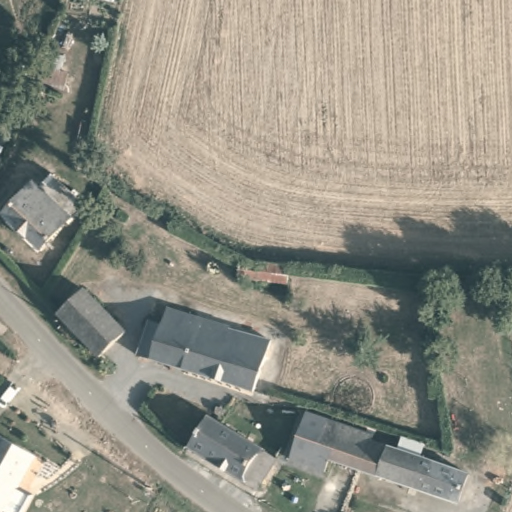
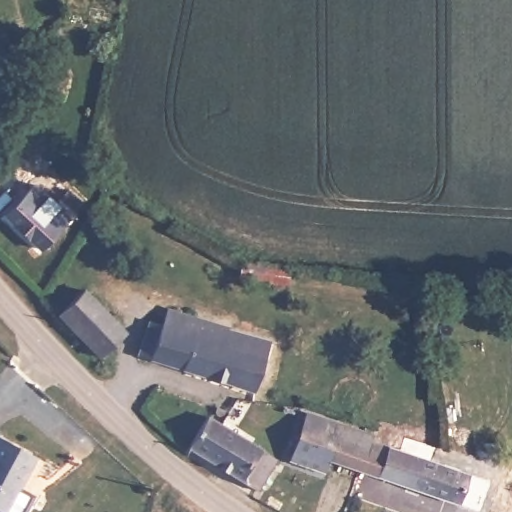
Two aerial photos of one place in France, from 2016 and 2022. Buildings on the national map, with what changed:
unchanged [(0,222),(0,217),(31,181),(36,185),(45,176),(76,205),(34,253),(0,222)]
unchanged [(236,279),(240,262),(288,266),(287,282),(236,279)]
unchanged [(98,357),(57,314),(82,290),(124,332),(98,357)]
unchanged [(141,356),(151,322),(166,325),(171,309),(230,326),(215,378),(141,356)]
unchanged [(273,339),(257,391),(215,378),(230,326),(273,339)]
unchanged [(350,448),(345,465),(328,459),(322,474),(288,460),(305,415),(325,421),(320,438),(350,448)]
unchanged [(287,461),(269,494),(204,453),(222,422),(233,427),(239,431),(245,421),(286,445),(280,457),(287,461)]
unchanged [(455,503),(358,469),(345,465),(350,448),(320,438),(325,421),(370,436),(371,438),(373,441),(464,473),(455,503)]
unchanged [(1,512),(0,511),(0,438),(37,458),(9,512),(1,512)]

